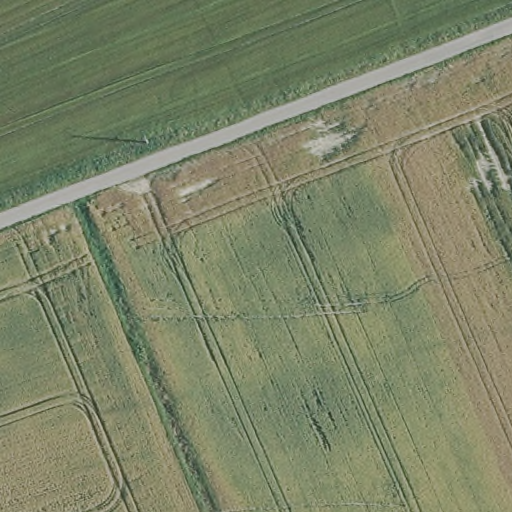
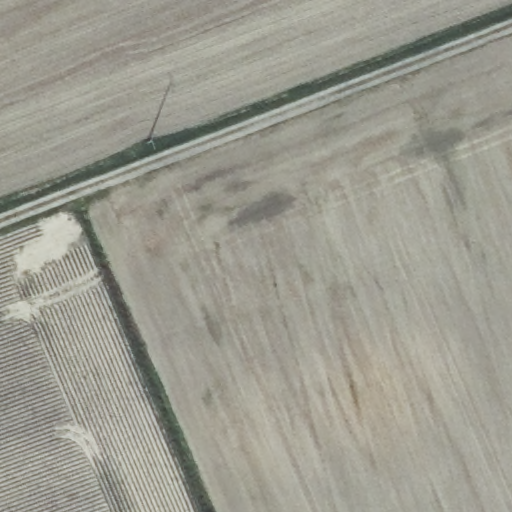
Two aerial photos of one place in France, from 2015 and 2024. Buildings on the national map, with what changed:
[]

